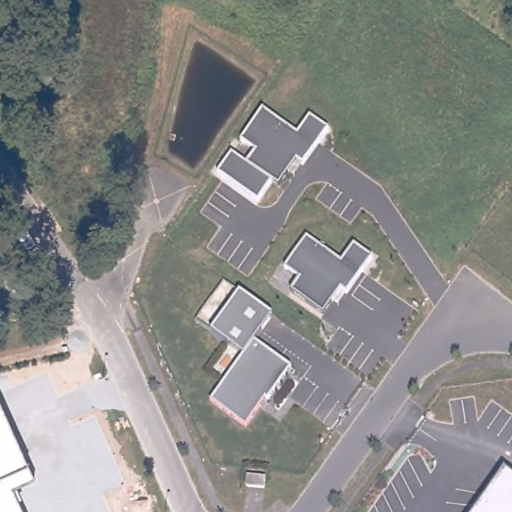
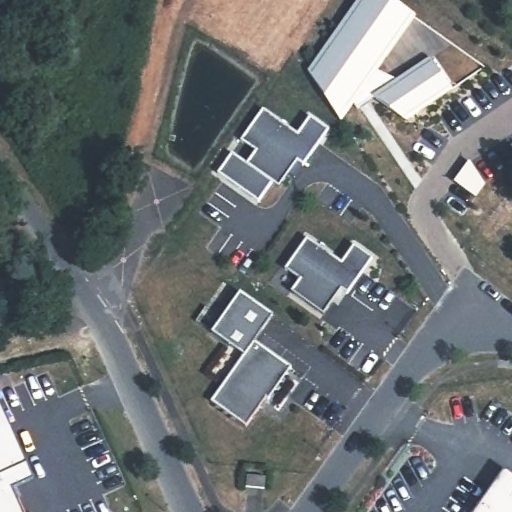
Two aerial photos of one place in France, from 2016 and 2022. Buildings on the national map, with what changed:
new [(392,0),(416,17),(378,71),(398,80),(433,54),(455,86),(407,121),(374,98),(358,109),(354,103),(342,121),(309,71),(359,0),(392,0)]
unchanged [(218,172),(233,152),(247,162),(255,151),(241,141),(264,109),(297,134),(310,116),(330,131),(304,167),(299,162),(281,189),(273,183),(260,203),(218,172)]
new [(470,162),(485,185),(476,197),(455,182),(470,162)]
unchanged [(342,265),(355,246),(374,259),(339,309),(330,302),(322,314),(292,292),(299,280),(286,268),(308,237),(342,265)]
unchanged [(276,312),(257,338),(294,363),(270,397),(268,396),(248,423),(213,398),(246,352),(214,330),(242,289),(242,288),(276,312)]
unchanged [(26,464),(33,478),(11,487),(21,512),(0,512),(0,406),(26,464)]
unchanged [(512,512),(478,512),(507,472),(512,476),(512,512)]
unchanged [(248,476),(267,477),(266,488),(247,487),(248,476)]

